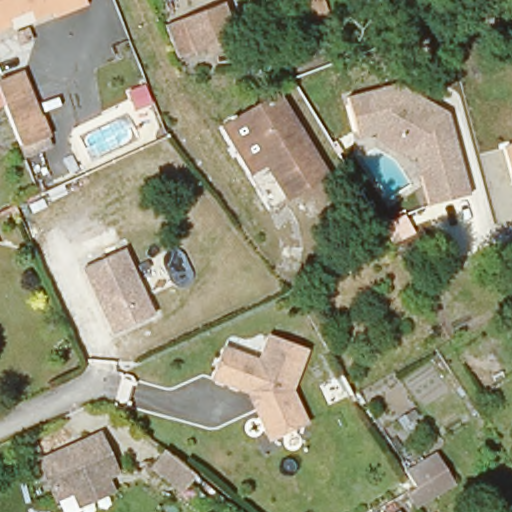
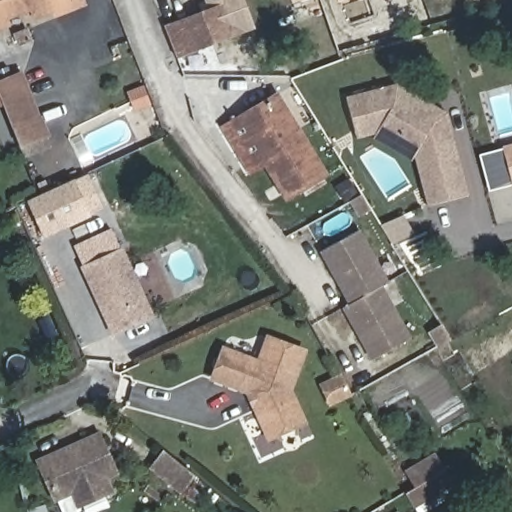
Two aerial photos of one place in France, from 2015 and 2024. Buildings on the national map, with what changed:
unchanged [(16,0),(20,11),(14,15),(18,23),(0,31),(0,0),(16,0)]
unchanged [(16,0),(47,0),(20,11),(16,0)]
unchanged [(66,0),(88,0),(69,8),(66,0)]
new [(292,0),(302,0),(293,3),(292,0)]
new [(338,0),(348,0),(339,3),(338,0)]
demolished [(345,0),(348,0),(346,1),(345,0)]
unchanged [(189,24),(224,10),(235,38),(198,53),(179,61),(168,33),(189,24)]
unchanged [(392,84),(446,112),(468,193),(425,200),(414,163),(370,135),(354,139),(340,96),(392,84)]
unchanged [(3,96),(26,86),(47,131),(22,143),(3,96)]
unchanged [(233,116),(270,91),(322,160),(285,188),(233,116)]
unchanged [(270,199),(217,128),(233,116),(285,188),(270,199)]
new [(512,143),(512,181),(503,145),(512,143)]
unchanged [(322,160),(336,180),(299,207),(285,188),(322,160)]
new [(90,215),(43,238),(27,200),(75,179),(89,173),(104,207),(90,215)]
unchanged [(111,329),(81,269),(73,246),(110,228),(117,251),(147,314),(111,329)]
new [(372,360),(343,307),(349,304),(320,252),(360,229),(390,283),(383,286),(412,337),(372,360)]
unchanged [(302,349),(292,383),(307,419),(274,437),(254,399),(214,388),(223,358),(255,367),(264,338),(302,349)]
unchanged [(81,504),(73,490),(58,498),(41,464),(96,436),(114,470),(102,475),(107,489),(81,504)]
unchanged [(179,490),(170,484),(151,470),(165,451),(187,467),(192,472),(179,490)]
unchanged [(414,509),(405,491),(411,486),(402,469),(434,451),(454,485),(414,509)]
unchanged [(392,511),(393,512),(391,512),(392,511)]

